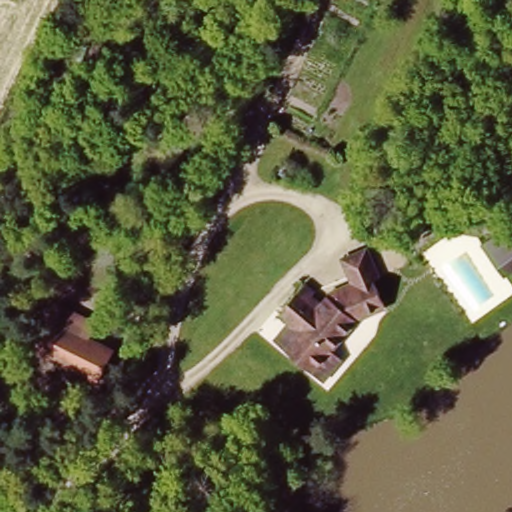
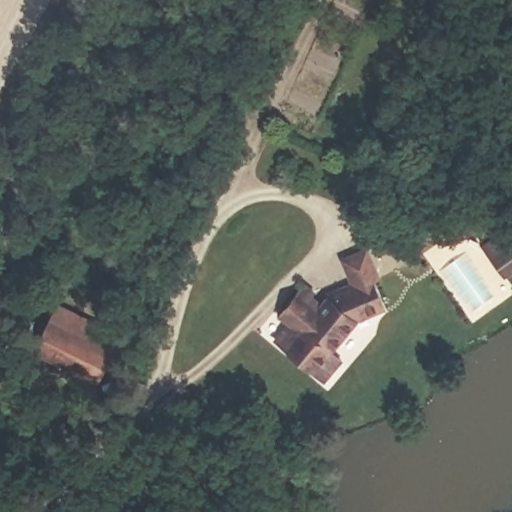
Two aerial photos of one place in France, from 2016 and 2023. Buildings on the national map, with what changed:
unchanged [(507,244),(512,240),(512,270),(503,275),(480,244),(498,232),(507,244)]
unchanged [(355,361),(331,383),(292,350),(306,334),(286,319),(315,282),(331,293),(353,280),(344,255),(375,243),(389,274),(380,287),(395,309),(370,317),(343,349),(355,361)]
unchanged [(93,313),(82,342),(111,353),(91,396),(22,371),(57,294),(93,313)]

